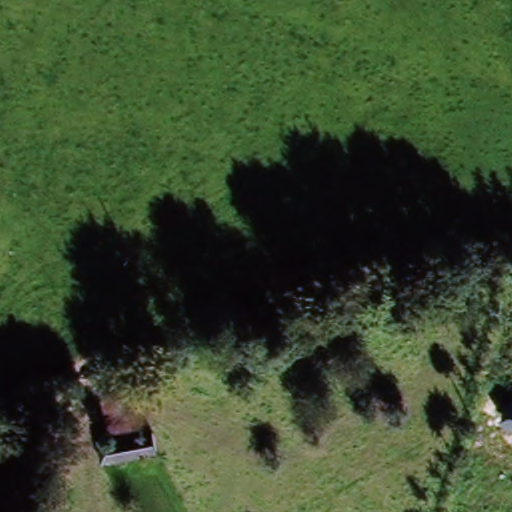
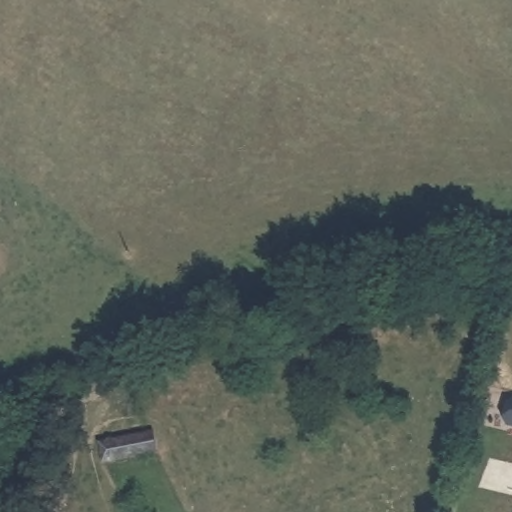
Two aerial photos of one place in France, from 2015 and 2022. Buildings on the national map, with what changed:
unchanged [(498,389),(493,409),(477,406),(481,385),(498,389)]
unchanged [(505,419),(512,396),(512,421),(505,419)]
unchanged [(152,427),(156,450),(103,462),(97,439),(152,427)]

